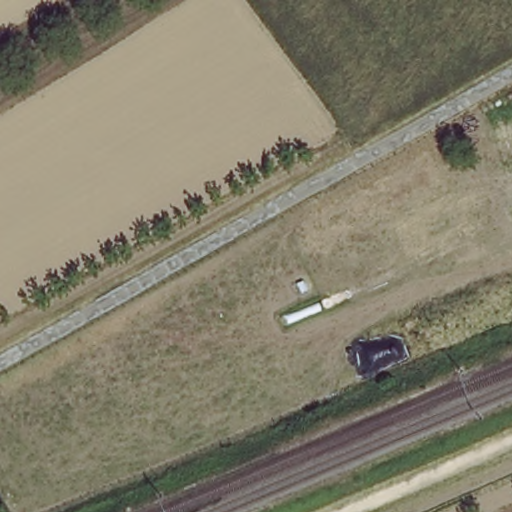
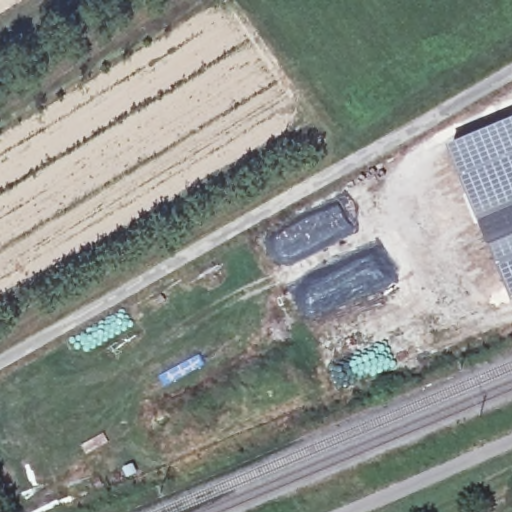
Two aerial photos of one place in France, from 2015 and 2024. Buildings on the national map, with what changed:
new [(480,230),(477,230),(464,200),(467,199),(447,154),(512,127),(512,299),(510,300),(480,230)]

